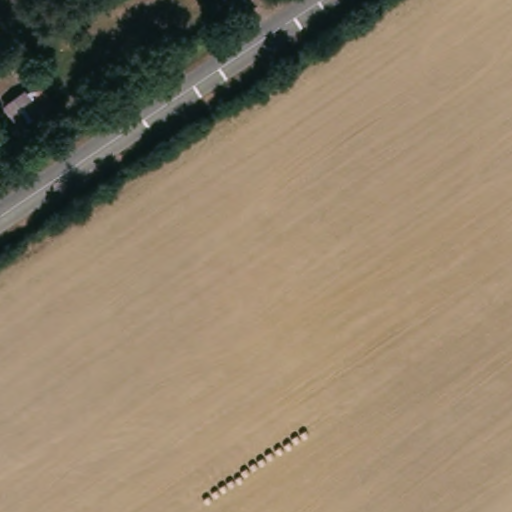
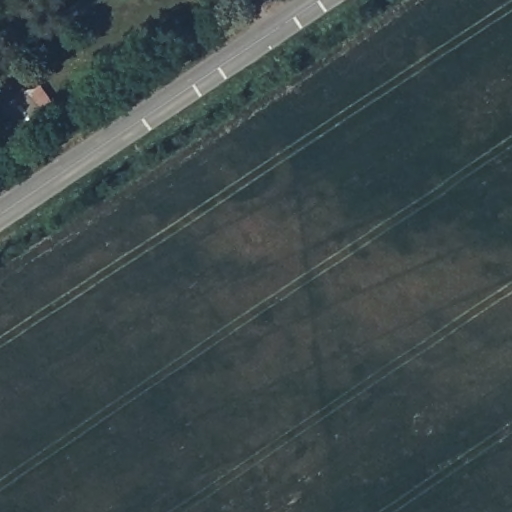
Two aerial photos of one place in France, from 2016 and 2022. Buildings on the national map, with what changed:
unchanged [(40,114),(13,130),(1,107),(24,90),(40,114)]

